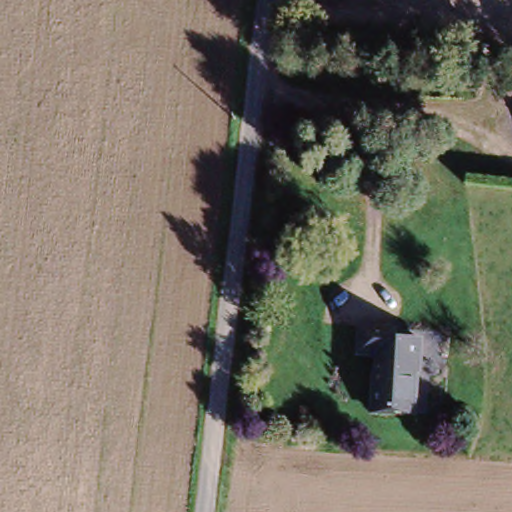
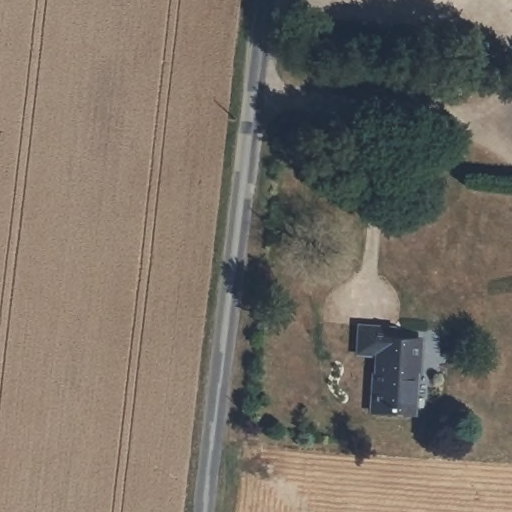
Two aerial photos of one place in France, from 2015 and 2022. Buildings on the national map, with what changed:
unchanged [(427,373),(424,373),(419,419),(374,416),(380,357),(358,355),(361,324),(400,328),(398,338),(430,343),(427,373)]

